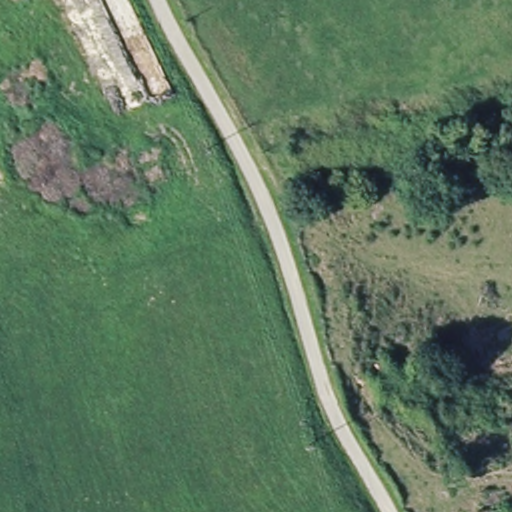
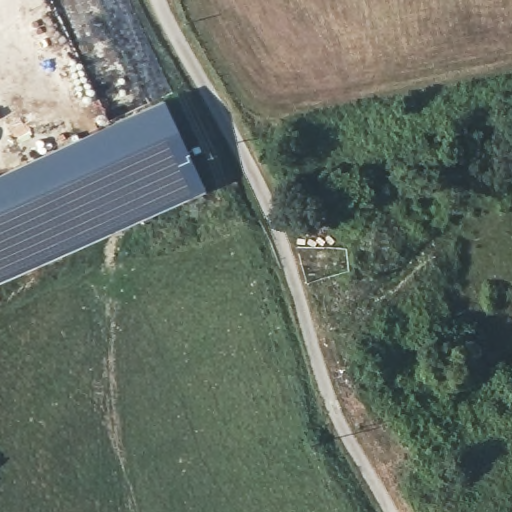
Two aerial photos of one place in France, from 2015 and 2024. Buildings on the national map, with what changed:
new [(0,283),(0,172),(163,96),(206,188),(0,283)]

